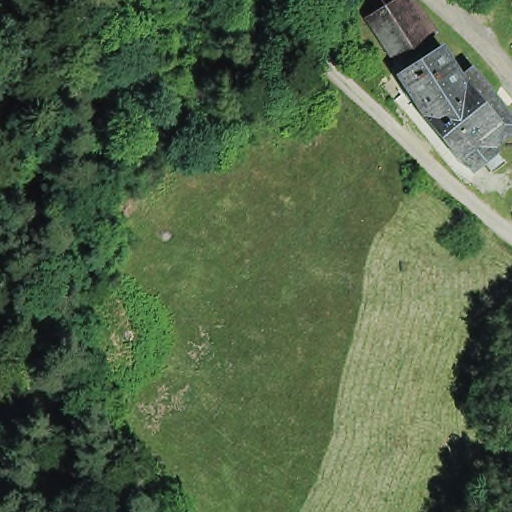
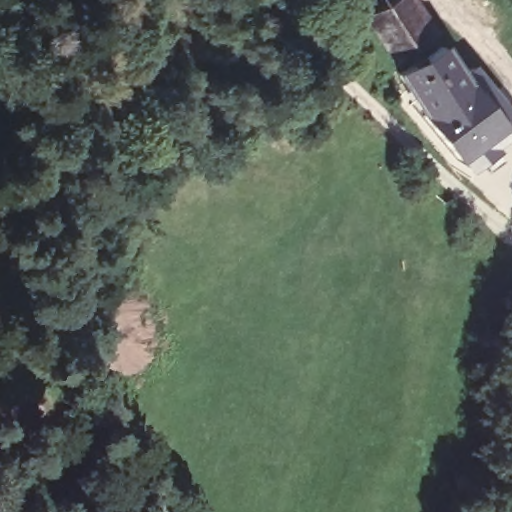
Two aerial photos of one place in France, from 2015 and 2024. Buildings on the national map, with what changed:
unchanged [(499,157),(477,174),(464,160),(502,128),(467,86),(428,119),(401,77),(407,73),(400,62),(378,27),(373,18),(377,15),(402,0),(408,0),(434,42),(441,51),(445,49),(463,78),(472,71),(512,119),(512,139),(497,152),(499,157)]
unchanged [(459,164),(426,121),(428,119),(467,86),(502,128),(464,160),(459,164)]

